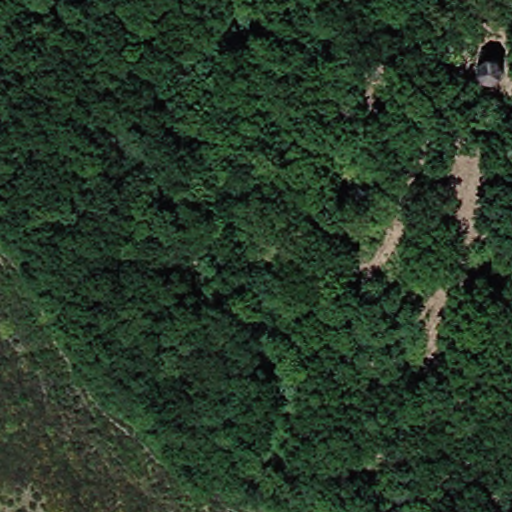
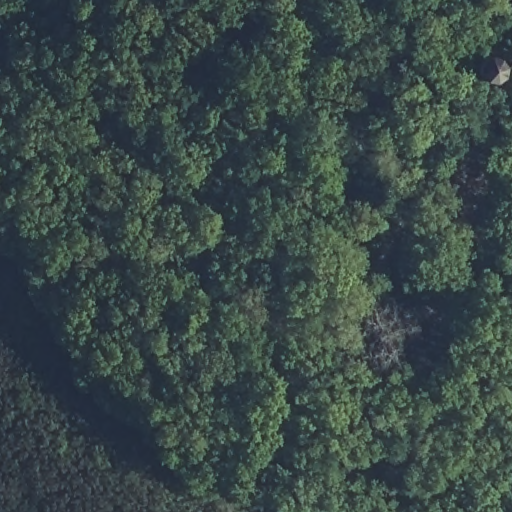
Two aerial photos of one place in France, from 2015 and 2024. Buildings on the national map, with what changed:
unchanged [(492,56),(495,57),(498,60),(501,61),(502,65),(502,70),(502,75),(501,77),(499,80),(495,82),(490,82),(485,81),(480,77),(478,72),(478,69),(480,64),(482,60),(487,57),(492,56)]

